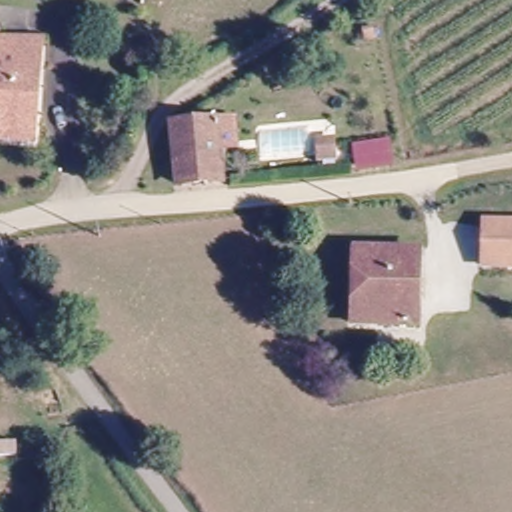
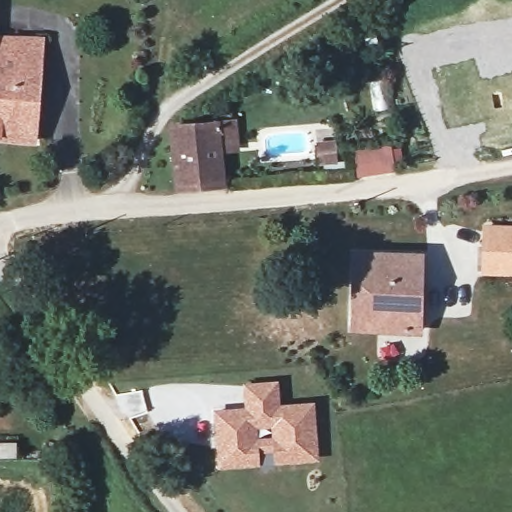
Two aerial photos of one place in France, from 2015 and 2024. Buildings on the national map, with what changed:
unchanged [(0,29),(31,32),(30,80),(27,111),(32,112),(31,139),(0,135),(0,29)]
unchanged [(207,119),(222,120),(224,145),(209,145),(212,179),(168,182),(163,122),(207,119)]
new [(353,129),(360,128),(360,123),(374,122),(377,143),(383,142),(385,160),(396,159),(396,171),(356,176),(353,129)]
unchanged [(305,136),(307,156),(265,158),(263,139),(305,136)]
unchanged [(334,153),(335,167),(319,167),(318,154),(334,153)]
unchanged [(476,276),(476,231),(512,231),(512,277),(476,276)]
unchanged [(412,322),(348,321),(349,244),(413,246),(412,322)]
new [(273,464),(273,453),(260,454),(260,466),(218,469),(214,410),(245,407),(243,383),(279,380),(281,405),(315,402),(320,460),(273,464)]

